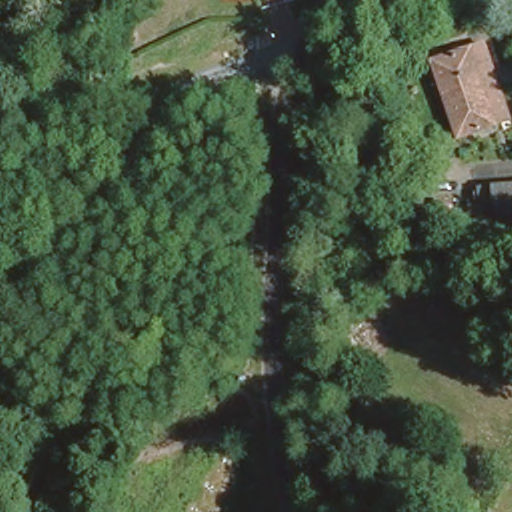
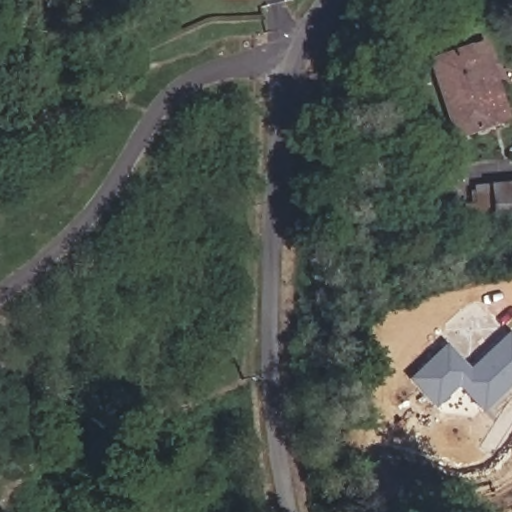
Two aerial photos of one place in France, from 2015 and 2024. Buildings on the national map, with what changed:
unchanged [(497,121),(453,130),(432,50),(478,39),(497,121)]
unchanged [(471,185),(489,184),(512,183),(512,228),(492,229),(474,230),(471,185)]
new [(445,344),(469,369),(508,332),(512,335),(512,387),(485,413),(460,387),(437,408),(408,380),(445,344)]

